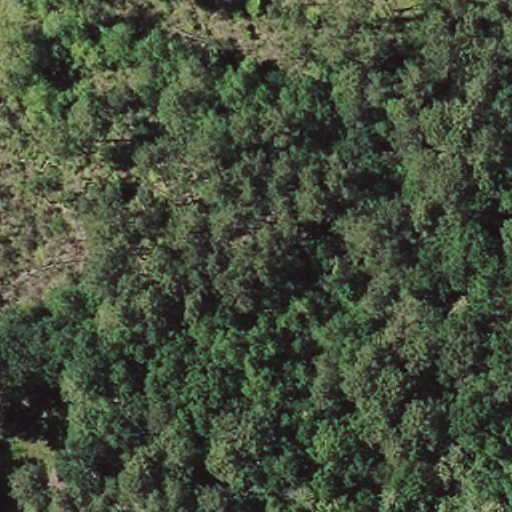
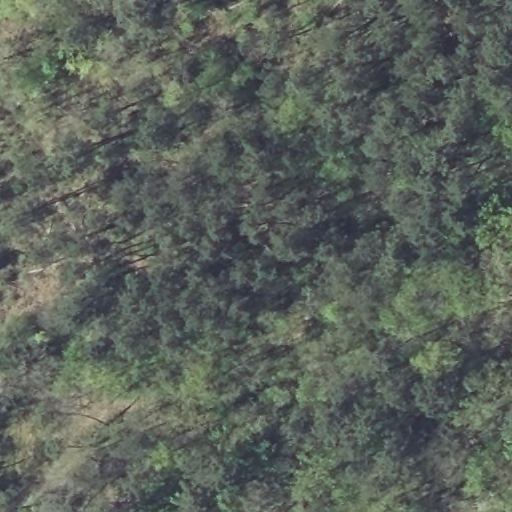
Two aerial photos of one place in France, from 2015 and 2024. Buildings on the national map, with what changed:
[]

